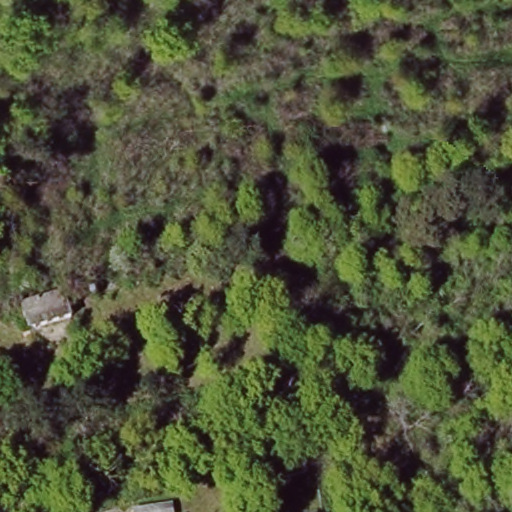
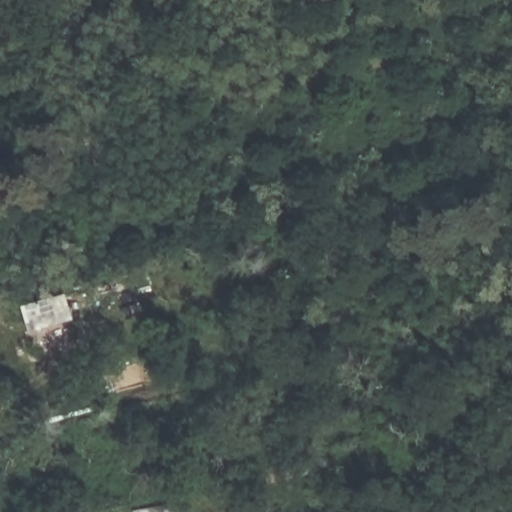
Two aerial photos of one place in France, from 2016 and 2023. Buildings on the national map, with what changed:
unchanged [(0,170),(2,177),(10,206),(0,208),(0,170)]
unchanged [(25,301),(64,288),(71,313),(32,325),(25,301)]
unchanged [(236,483),(233,489),(191,500),(188,488),(234,476),(236,483)]

